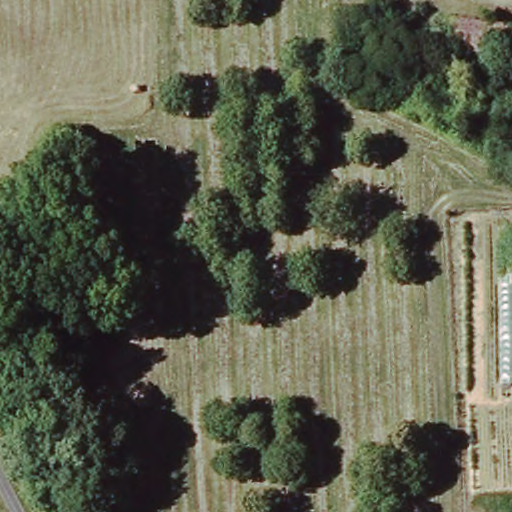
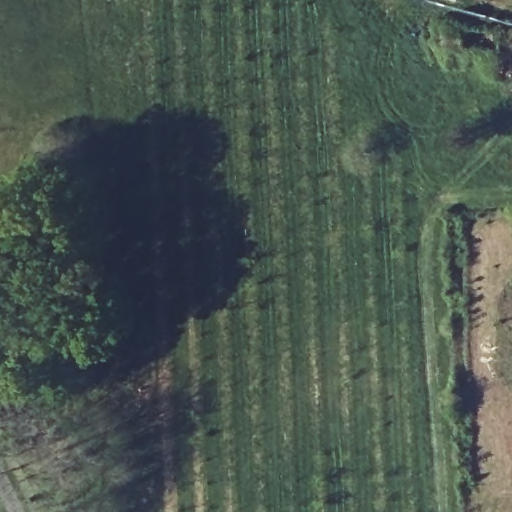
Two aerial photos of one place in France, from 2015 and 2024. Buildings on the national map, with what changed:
unchanged [(448,23),(512,29),(512,72),(509,71),(511,61),(479,57),(477,64),(460,62),(461,44),(446,43),(448,23)]
demolished [(505,270),(512,271),(512,389),(502,388),(505,270)]

